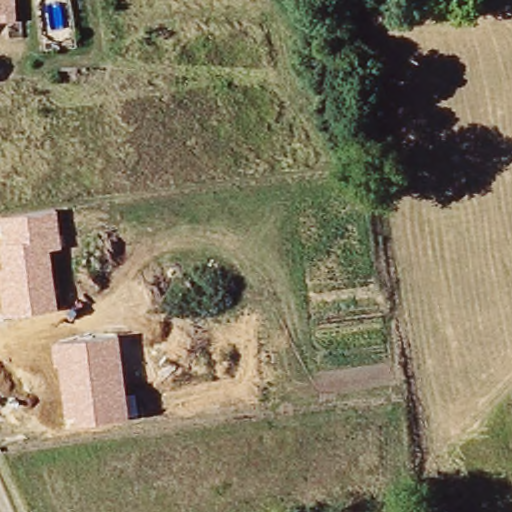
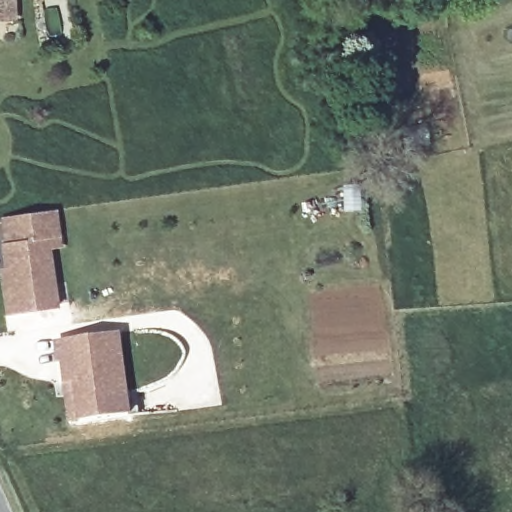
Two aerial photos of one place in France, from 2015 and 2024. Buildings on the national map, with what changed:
unchanged [(11,19),(0,18),(0,0),(11,0),(11,19)]
unchanged [(50,250),(58,309),(5,317),(0,281),(0,269),(3,268),(0,245),(4,244),(0,217),(56,209),(63,248),(50,250)]
unchanged [(130,414),(67,423),(57,342),(120,333),(130,414)]

